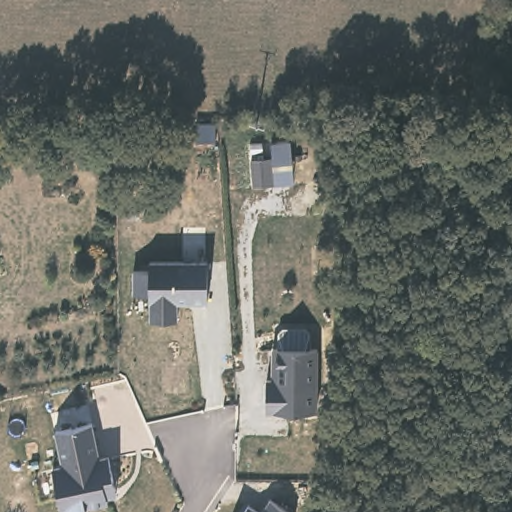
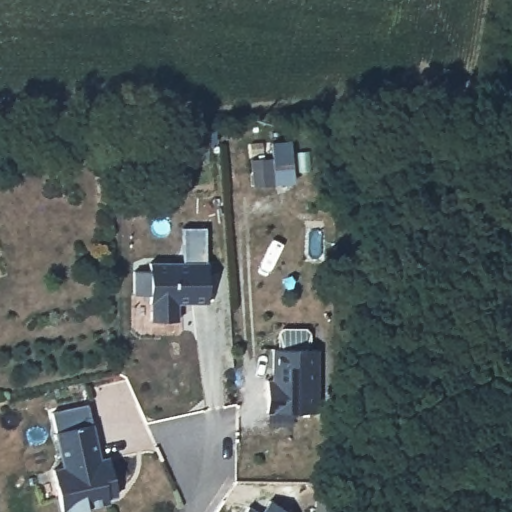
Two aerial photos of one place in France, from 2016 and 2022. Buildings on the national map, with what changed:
unchanged [(146,262),(207,261),(207,304),(178,304),(178,323),(150,324),(151,297),(132,296),(133,270),(146,262)]
unchanged [(283,328),(306,329),(310,334),(310,347),(319,347),(319,418),(266,413),(267,379),(271,379),(270,346),(277,346),(276,333),(283,328)]
unchanged [(90,426),(98,461),(110,460),(115,491),(107,493),(109,506),(79,512),(61,512),(54,469),(64,469),(56,432),(90,426)]
unchanged [(271,501),(285,512),(262,512),(271,501)]
unchanged [(250,508),(255,512),(246,512),(250,508)]

